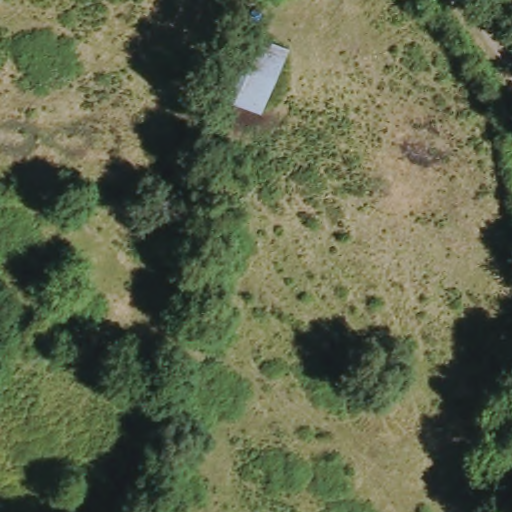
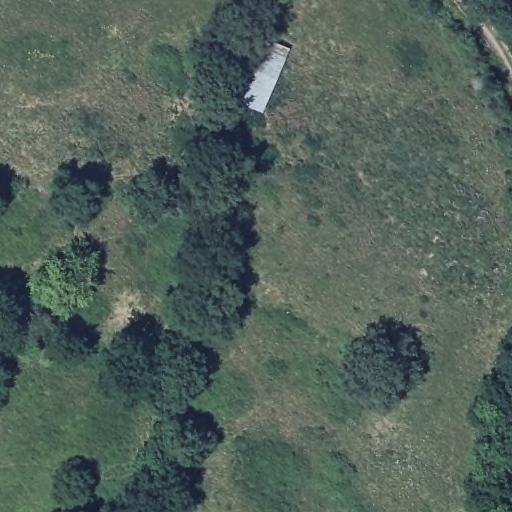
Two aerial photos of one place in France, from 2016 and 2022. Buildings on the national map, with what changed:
unchanged [(225,94),(247,29),(288,47),(261,111),(225,94)]

